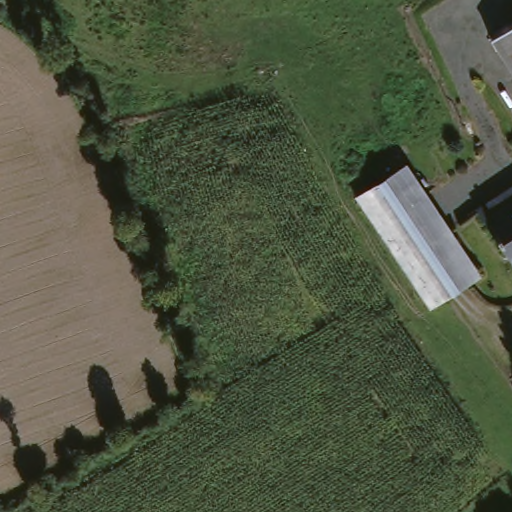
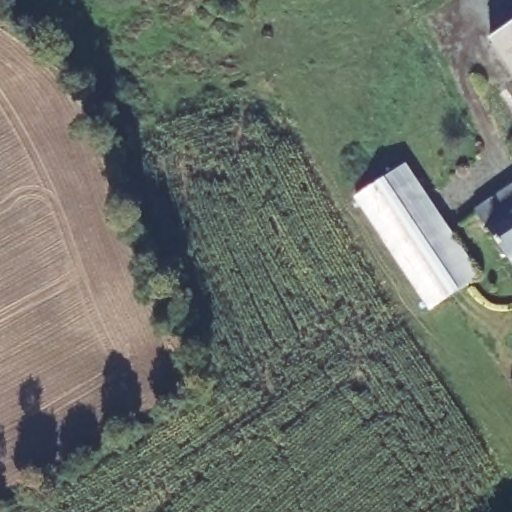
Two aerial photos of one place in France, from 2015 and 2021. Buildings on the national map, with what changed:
unchanged [(512,19),(512,82),(485,38),(512,19)]
unchanged [(476,279),(426,311),(353,201),(402,168),(476,279)]
unchanged [(474,213),(512,188),(512,256),(505,260),(474,213)]

